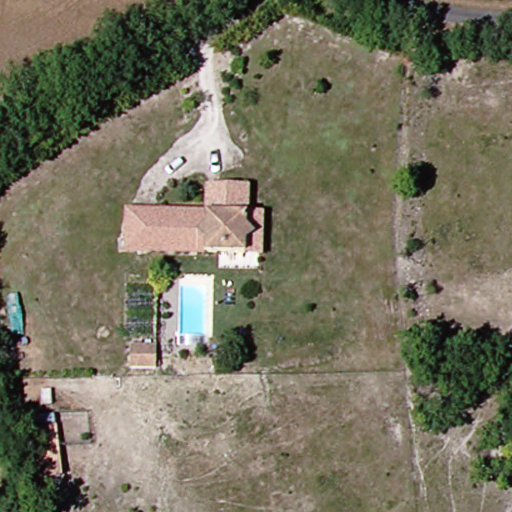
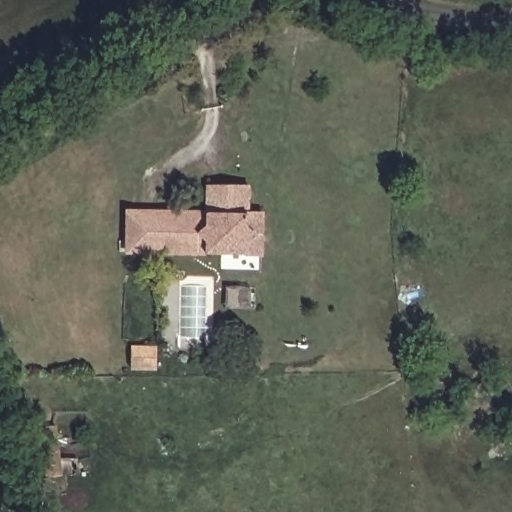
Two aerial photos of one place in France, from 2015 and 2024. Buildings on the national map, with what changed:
unchanged [(253,230),(257,231),(256,245),(252,246),(252,259),(133,257),(135,211),(212,214),(212,191),(225,191),(253,193),(253,230)]
unchanged [(159,347),(158,367),(128,366),(129,346),(159,347)]

